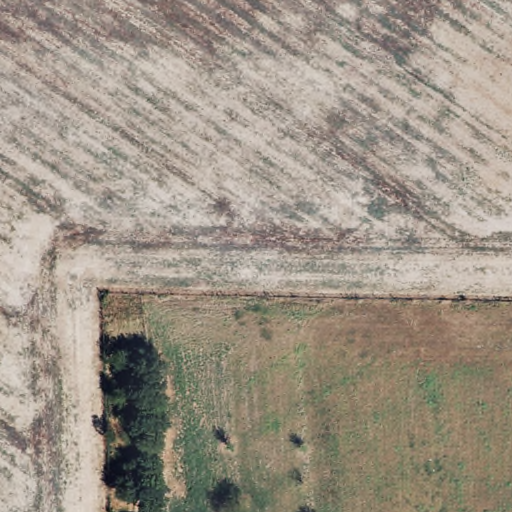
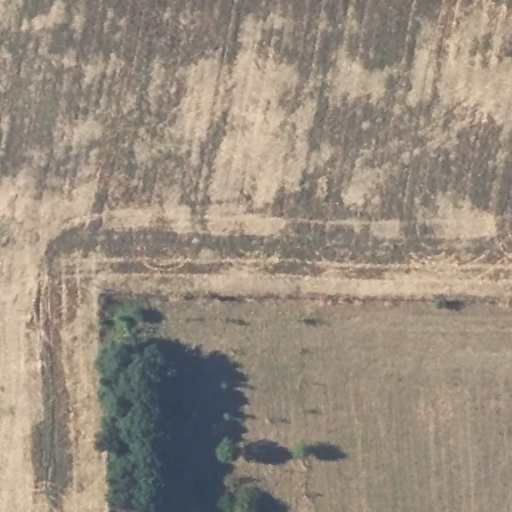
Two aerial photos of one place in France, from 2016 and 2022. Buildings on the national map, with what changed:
[]

